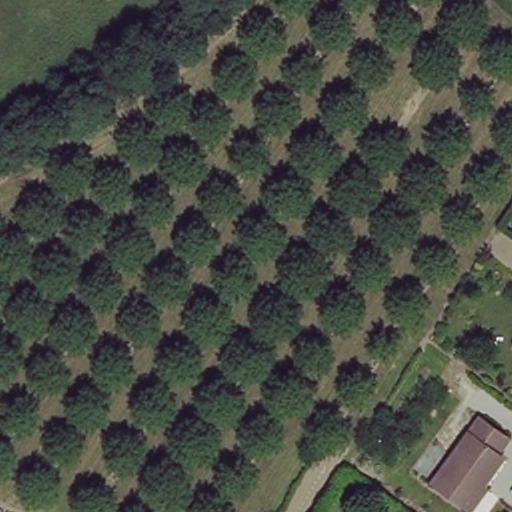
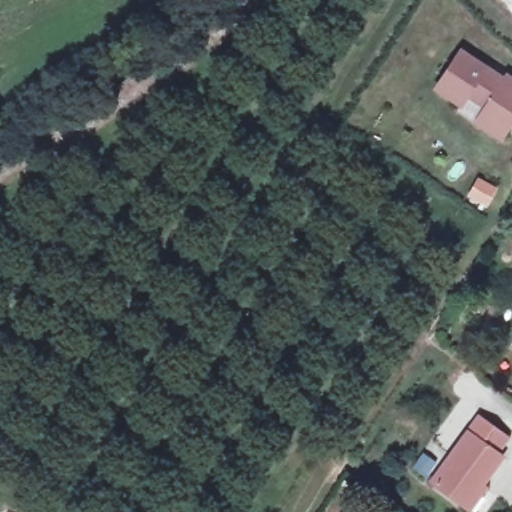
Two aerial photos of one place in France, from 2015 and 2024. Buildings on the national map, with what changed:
new [(466,99),(461,109),(434,90),(460,49),(503,76),(506,71),(512,75),(512,128),(502,142),(473,123),(482,109),(466,99)]
new [(480,182),(495,190),(487,205),(472,197),(480,182)]
unchanged [(496,456),(463,506),(427,482),(468,420),(498,440),(490,453),(496,456)]

